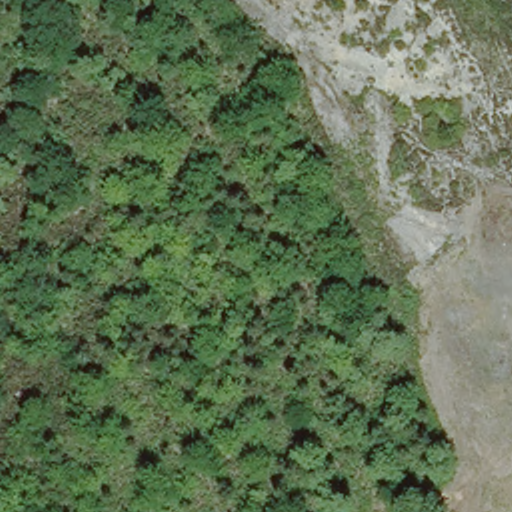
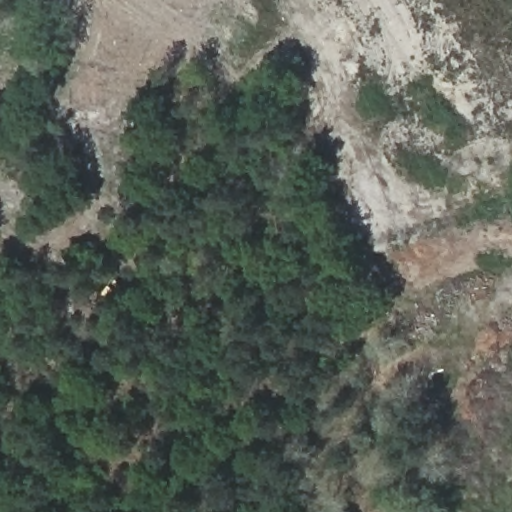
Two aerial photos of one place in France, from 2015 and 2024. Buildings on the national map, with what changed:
[]

